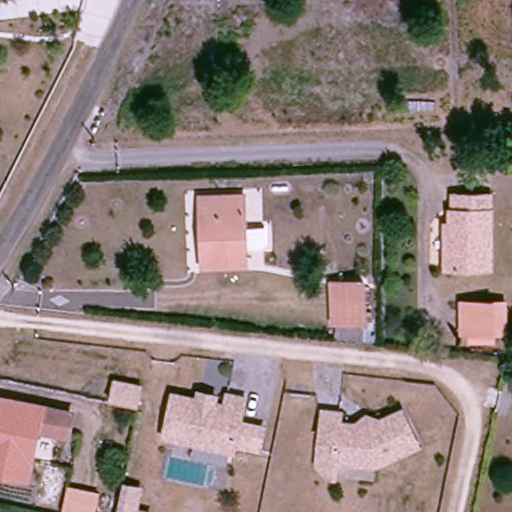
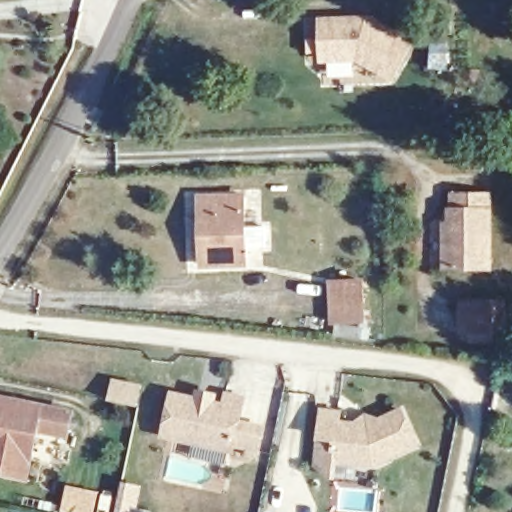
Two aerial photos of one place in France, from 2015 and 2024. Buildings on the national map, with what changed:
new [(367,16),(415,41),(395,82),(356,64),(320,64),(318,16),(367,16)]
unchanged [(492,259),(445,260),(444,214),(449,214),(449,200),(452,200),(452,185),(491,185),(491,200),(492,259)]
unchanged [(252,211),(253,236),(240,237),(241,260),(199,261),(198,240),(204,240),(202,192),(238,191),(239,212),(252,211)]
unchanged [(360,321),(327,323),(325,283),(359,281),(360,321)]
unchanged [(483,302),(495,302),(495,332),(483,332),(451,333),(451,302),(483,302)]
unchanged [(141,387),(136,406),(110,401),(114,381),(141,387)]
unchanged [(27,473),(0,468),(0,393),(72,408),(68,431),(36,425),(27,473)]
unchanged [(254,455),(228,450),(227,452),(159,436),(168,395),(193,400),(195,393),(210,396),(208,404),(221,407),(223,396),(240,400),(234,421),(261,428),(254,455)]
unchanged [(321,432),(324,406),(341,407),(371,411),(370,421),(403,406),(418,440),(376,460),(335,456),(319,454),(321,432)]
unchanged [(63,507),(68,482),(97,488),(92,512),(89,512),(63,507)]
unchanged [(121,485),(139,489),(134,511),(138,512),(115,512),(121,485)]

